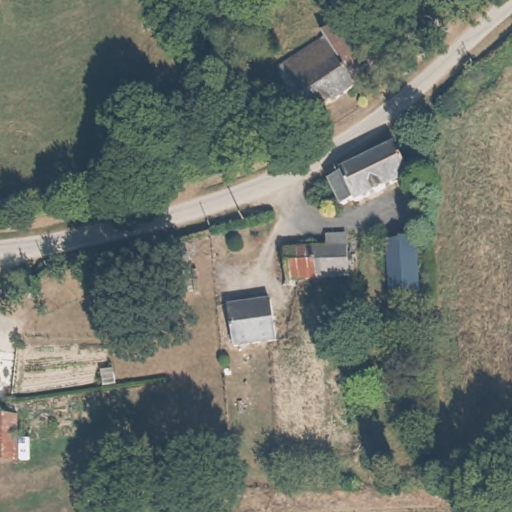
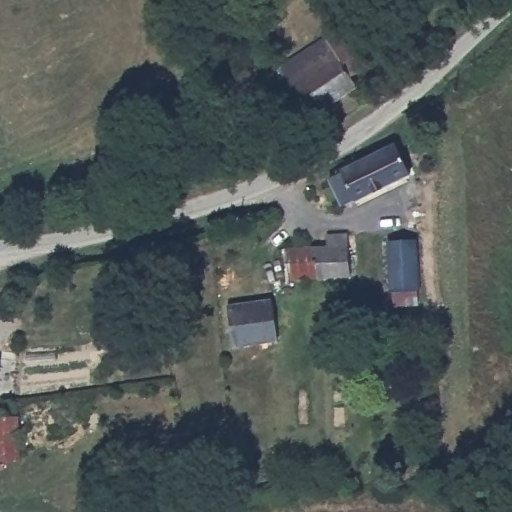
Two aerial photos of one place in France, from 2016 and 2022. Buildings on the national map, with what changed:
unchanged [(378,65),(352,84),(357,93),(305,128),(283,92),(279,73),(350,22),(378,65)]
unchanged [(398,139),(415,168),(343,206),(329,177),(398,139)]
unchanged [(352,281),(348,281),(293,286),(288,250),(327,248),(327,239),(350,238),(352,281)]
unchanged [(389,291),(386,246),(419,243),(422,290),(389,291)]
unchanged [(146,299),(141,264),(204,257),(208,294),(146,299)]
unchanged [(272,302),(277,339),(258,341),(236,342),(232,305),(254,303),(272,302)]
unchanged [(17,463),(0,461),(0,417),(24,419),(17,463)]

